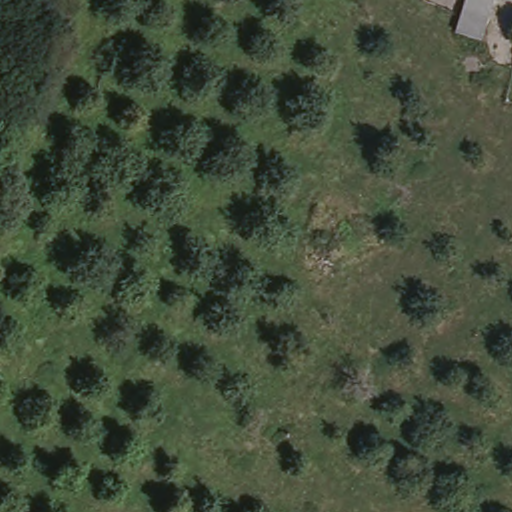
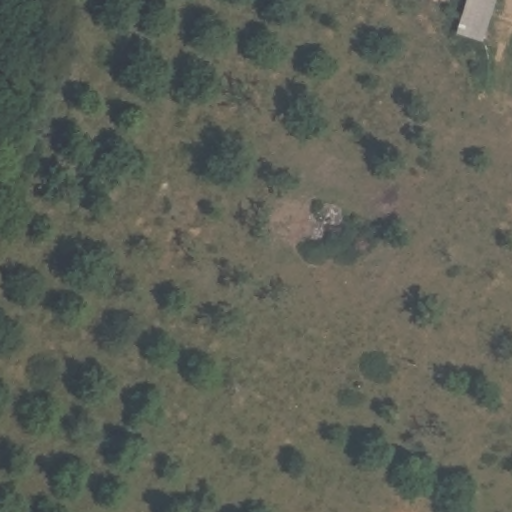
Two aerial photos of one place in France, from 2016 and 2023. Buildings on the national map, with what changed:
unchanged [(456,26),(461,9),(464,0),(493,0),(488,16),(482,34),(456,26)]

